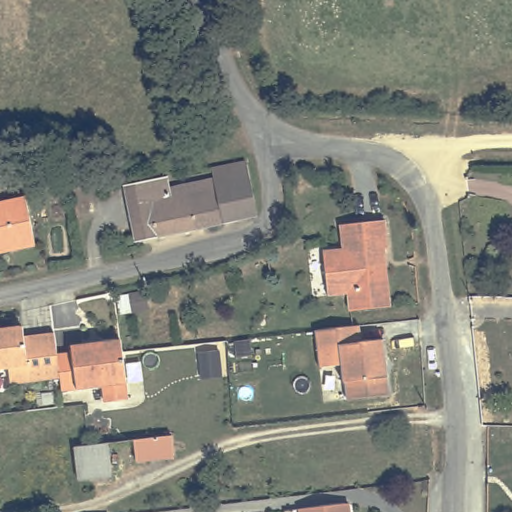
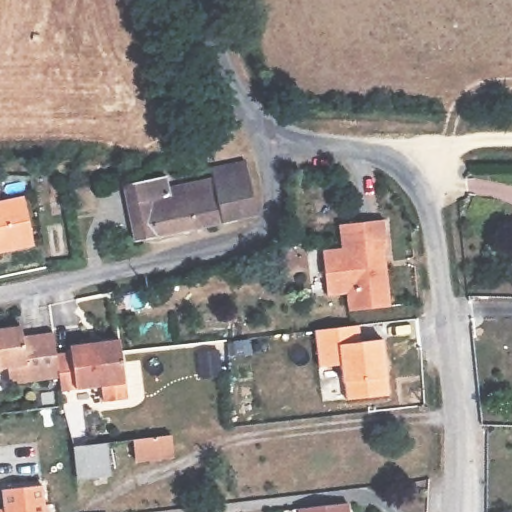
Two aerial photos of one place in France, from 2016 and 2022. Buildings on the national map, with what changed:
unchanged [(212,168),(214,163),(248,159),(257,213),(193,225),(187,181),(186,173),(198,173),(212,168)]
unchanged [(134,239),(122,182),(166,173),(169,184),(187,181),(193,225),(154,234),(134,239)]
unchanged [(99,183),(100,193),(94,194),(98,215),(71,220),(65,189),(99,183)]
unchanged [(31,247),(0,253),(0,203),(23,199),(31,247)]
unchanged [(344,289),(325,292),(321,245),(340,244),(337,219),(386,214),(389,246),(386,247),(390,301),(347,306),(344,289)]
unchanged [(359,325),(360,342),(384,339),(390,394),(346,399),(344,382),(342,382),(340,364),(318,367),(314,330),(359,325)]
unchanged [(20,339),(51,334),(54,355),(55,359),(58,379),(21,384),(18,368),(0,370),(0,331),(19,329),(20,339)]
unchanged [(103,402),(100,386),(80,389),(60,392),(58,379),(55,359),(54,355),(69,353),(68,346),(73,345),(118,339),(126,398),(103,402)]
unchanged [(175,454),(140,459),(138,443),(172,437),(175,454)]
unchanged [(109,474),(76,477),(75,448),(105,446),(109,474)]
new [(45,512),(4,512),(1,493),(42,488),(45,512)]
unchanged [(305,502),(353,497),(355,512),(306,512),(305,502)]
unchanged [(109,512),(85,512),(110,509),(109,512)]

